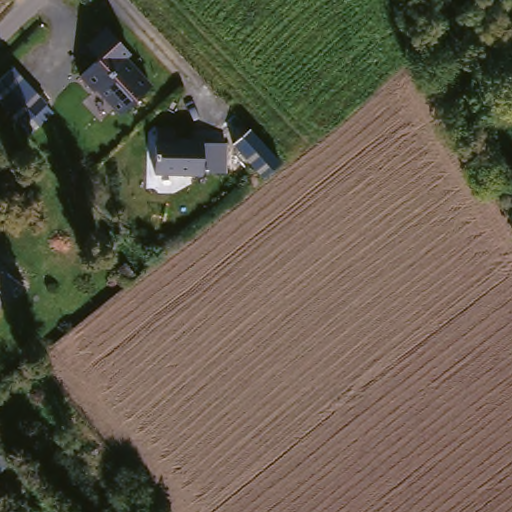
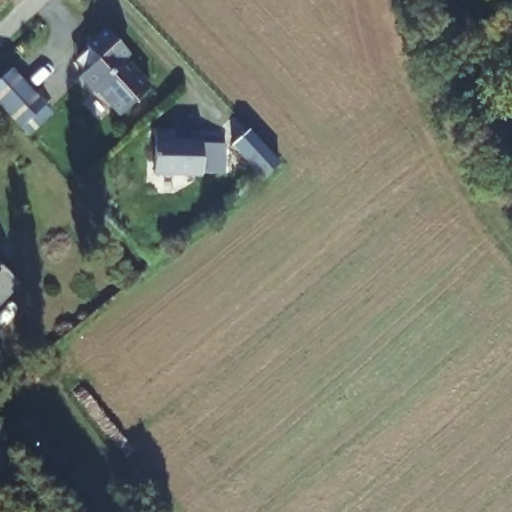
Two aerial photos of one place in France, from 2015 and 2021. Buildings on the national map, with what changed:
unchanged [(128,50),(123,55),(150,84),(120,111),(97,86),(93,89),(79,73),(98,56),(86,44),(106,26),(128,50)]
unchanged [(46,105),(22,128),(0,104),(0,77),(11,68),(46,105)]
unchanged [(170,126),(170,136),(199,138),(199,140),(221,141),(220,170),(197,170),(197,172),(150,170),(151,126),(170,126)]
unchanged [(272,161),(257,177),(256,177),(227,143),(244,128),(272,161)]
unchanged [(14,287),(0,301),(0,274),(14,287)]
unchanged [(20,436),(6,449),(13,458),(0,469),(0,415),(2,413),(20,436)]

